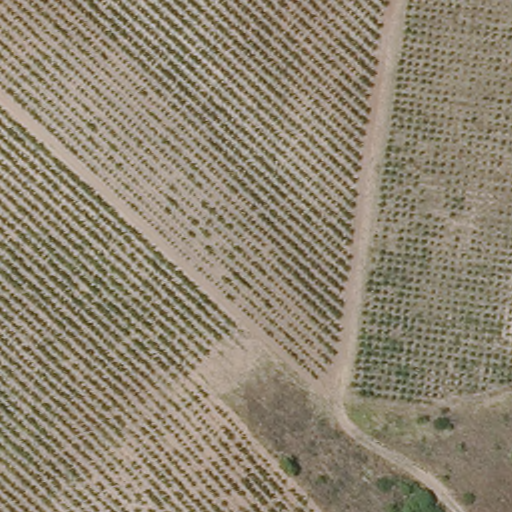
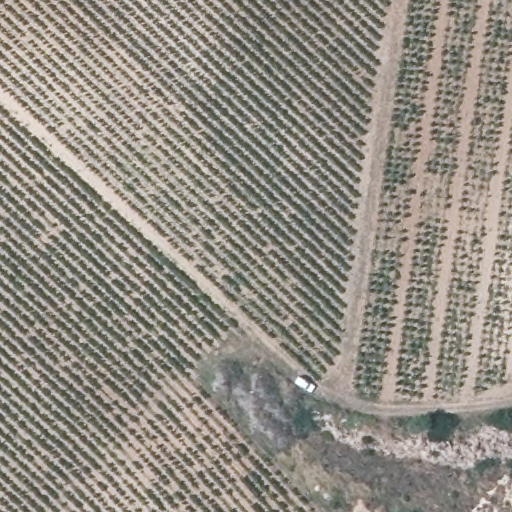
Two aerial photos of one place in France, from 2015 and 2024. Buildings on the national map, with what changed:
[]

